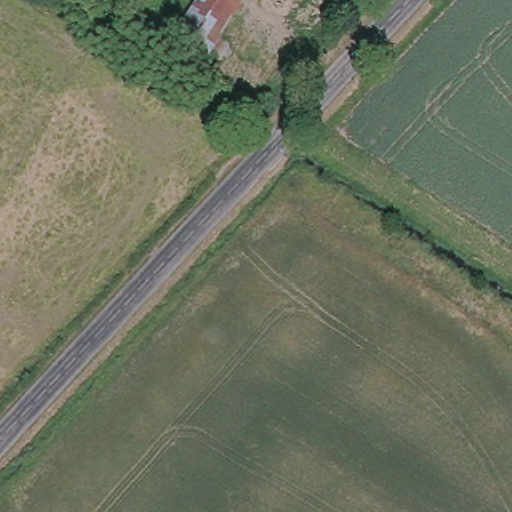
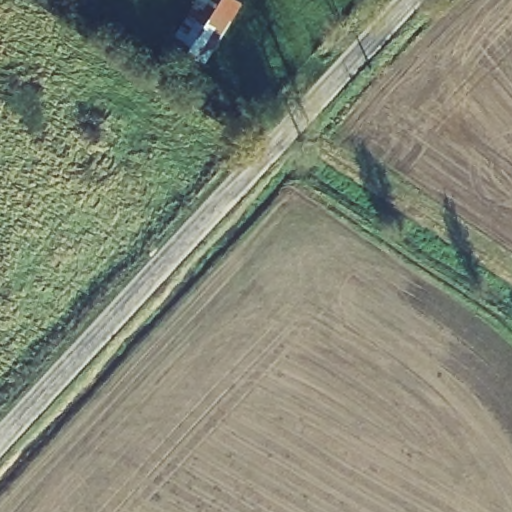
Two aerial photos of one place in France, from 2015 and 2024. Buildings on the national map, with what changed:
unchanged [(170,44),(198,0),(238,0),(243,4),(206,64),(170,44)]

